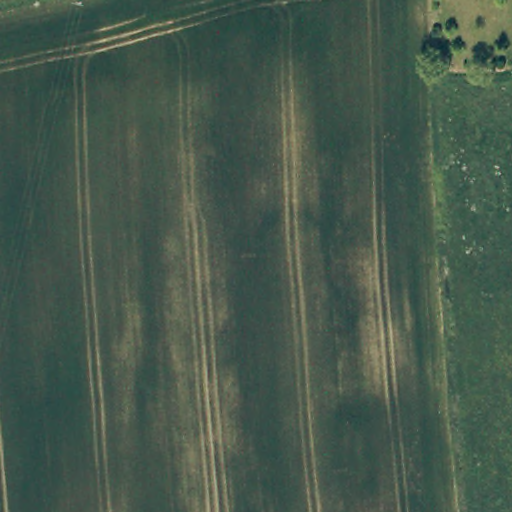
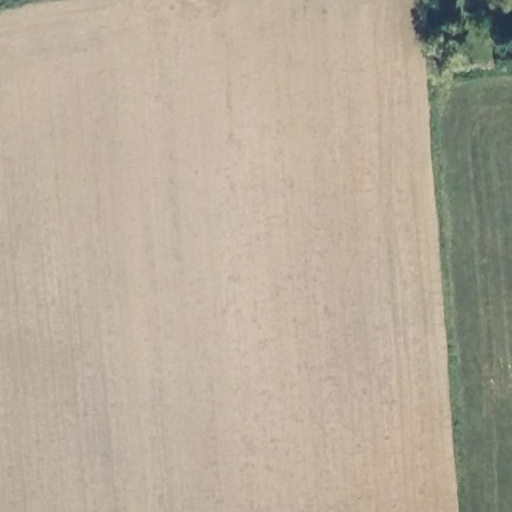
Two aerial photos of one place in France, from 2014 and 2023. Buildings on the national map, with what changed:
[]

